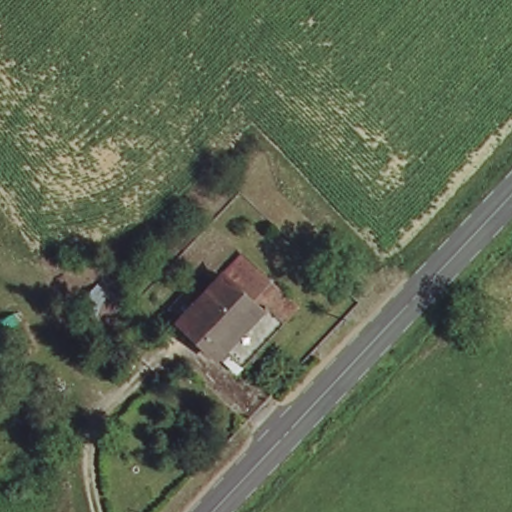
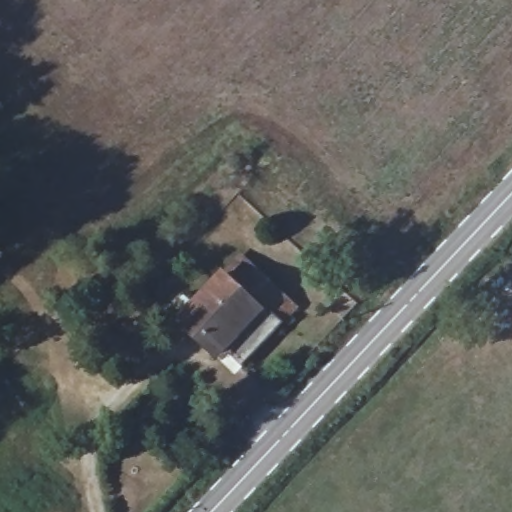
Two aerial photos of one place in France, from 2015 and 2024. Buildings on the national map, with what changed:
unchanged [(73,299),(81,269),(94,259),(111,273),(101,283),(124,306),(99,332),(73,299)]
unchanged [(233,264),(273,300),(281,292),(298,307),(253,354),(234,338),(227,346),(190,310),(233,264)]

